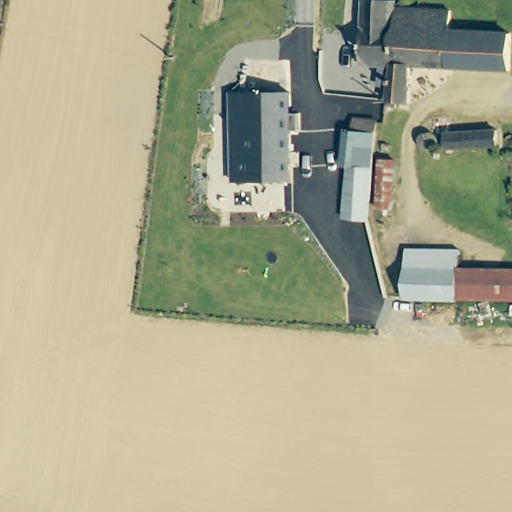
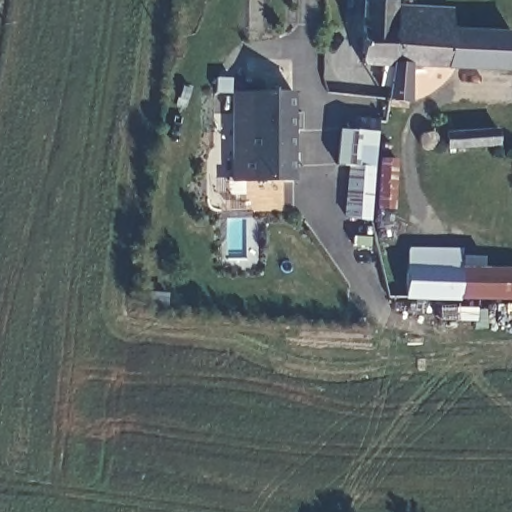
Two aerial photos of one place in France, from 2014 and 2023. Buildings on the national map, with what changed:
unchanged [(484,67),(412,61),(407,97),(383,95),(388,64),(361,60),(362,39),(367,0),(399,0),(422,2),(459,6),(458,12),(457,18),(458,26),(484,28),(484,67)]
unchanged [(512,69),(484,67),(484,28),(512,30),(512,69)]
unchanged [(240,92),(297,93),(298,184),(241,184),(240,92)]
unchanged [(385,121),(369,224),(347,222),(359,119),(385,121)]
unchanged [(443,131),(449,138),(446,145),(441,151),(436,152),(428,151),(425,143),(427,136),(436,130),(443,131)]
unchanged [(509,145),(457,146),(456,131),(510,132),(509,145)]
unchanged [(399,196),(385,197),(383,152),(398,151),(399,196)]
unchanged [(405,298),(406,250),(463,252),(463,265),(462,301),(405,298)]
unchanged [(463,265),(512,265),(512,303),(462,301),(463,265)]

